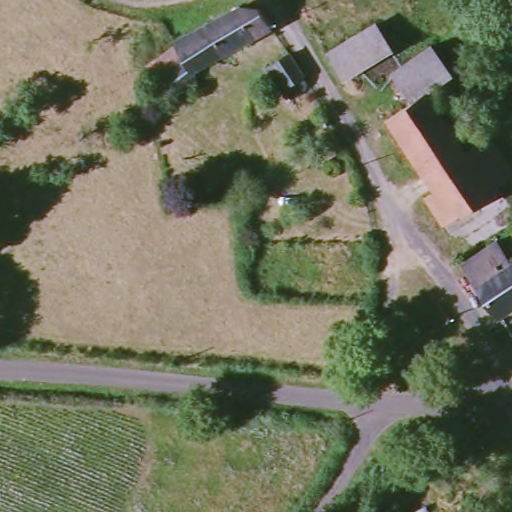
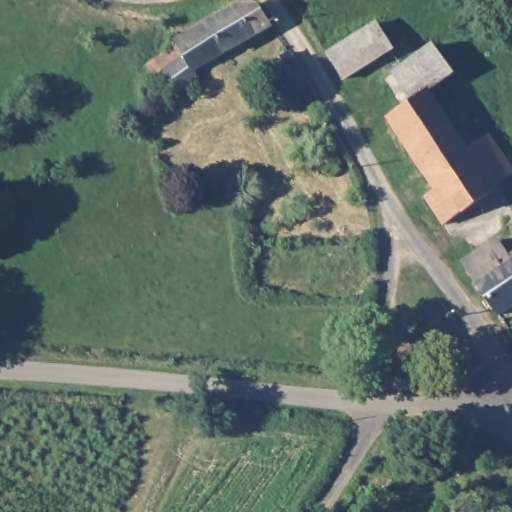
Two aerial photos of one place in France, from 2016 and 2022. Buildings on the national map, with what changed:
unchanged [(235,50),(219,21),(235,14),(256,15),(266,30),(235,50)]
unchanged [(194,74),(192,90),(174,97),(161,76),(179,65),(169,47),(219,21),(235,50),(194,74)]
unchanged [(355,80),(334,56),(352,47),(367,26),(372,31),(382,25),(400,51),(395,55),(355,80)]
unchanged [(440,45),(457,72),(430,89),(405,65),(440,45)]
unchanged [(302,78),(297,88),(290,88),(287,82),(282,83),(270,61),(285,51),(302,78)]
unchanged [(512,172),(495,183),(497,188),(443,222),(426,195),(435,187),(389,115),(417,96),(400,68),(405,65),(430,89),(469,147),(490,135),(512,169),(512,172)]
unchanged [(470,262),(505,240),(512,250),(512,308),(504,313),(470,262)]

